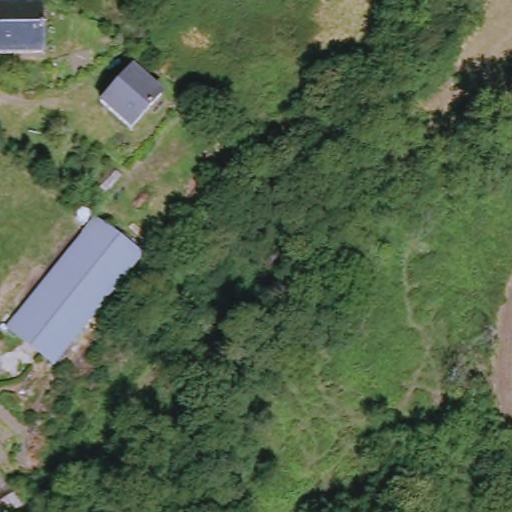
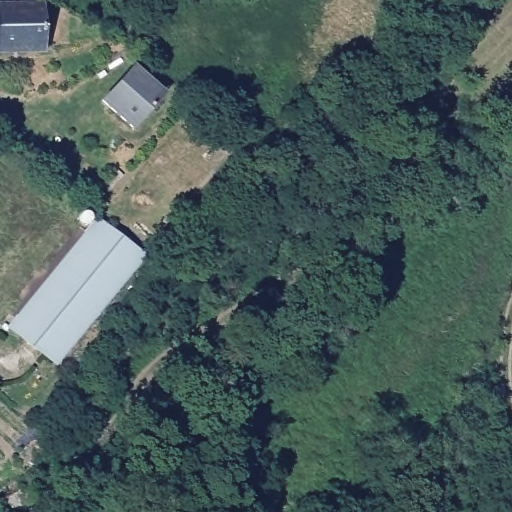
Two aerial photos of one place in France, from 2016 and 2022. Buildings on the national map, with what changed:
unchanged [(40,53),(0,53),(0,3),(41,2),(40,53)]
unchanged [(165,96),(135,130),(104,104),(133,70),(165,96)]
unchanged [(56,367),(11,329),(99,221),(146,258),(56,367)]
unchanged [(24,496),(27,501),(5,512),(0,512),(0,489),(22,477),(30,493),(24,496)]

